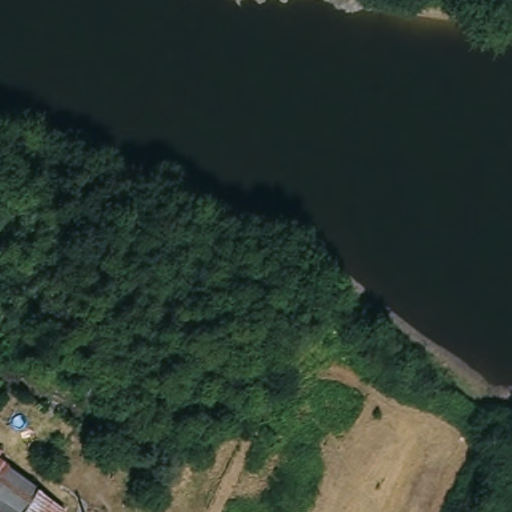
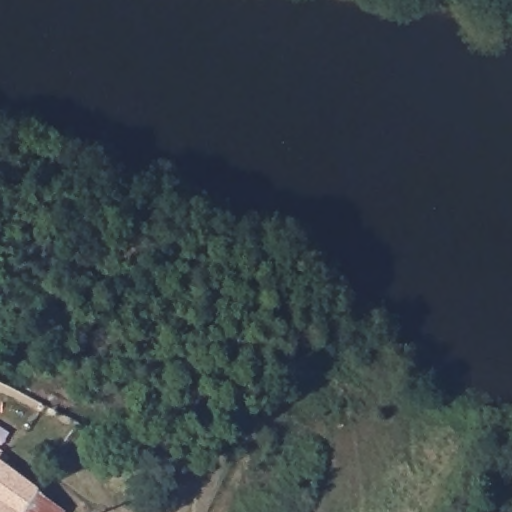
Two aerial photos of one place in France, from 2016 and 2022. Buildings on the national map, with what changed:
unchanged [(17,473),(43,492),(47,495),(57,502),(63,506),(70,511),(70,512),(0,512),(0,451),(21,466),(17,473)]

